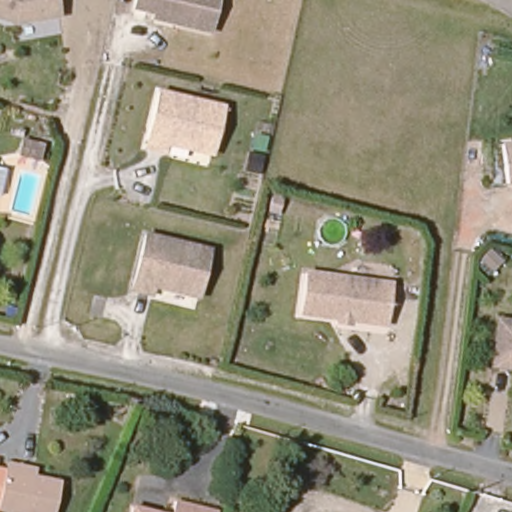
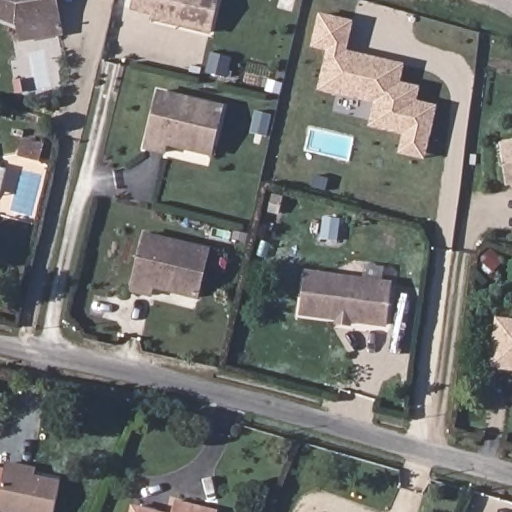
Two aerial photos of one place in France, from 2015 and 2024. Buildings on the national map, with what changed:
unchanged [(61,16),(15,25),(0,20),(0,0),(58,0),(61,16)]
unchanged [(212,31),(177,24),(178,16),(134,6),(135,0),(219,0),(212,31)]
new [(425,160),(398,154),(402,135),(368,127),(374,102),(317,90),(327,50),(311,47),(319,12),(354,20),(348,50),(405,64),(401,82),(421,86),(417,100),(438,105),(425,160)]
unchanged [(222,145),(194,140),(195,134),(178,131),(174,148),(154,144),(165,87),(231,101),(222,145)]
unchanged [(22,137),(44,141),(39,160),(19,155),(22,137)]
unchanged [(512,181),(507,182),(502,144),(512,142),(512,181)]
unchanged [(208,295),(180,289),(182,281),(162,277),(158,295),(138,291),(151,235),(217,250),(208,295)]
unchanged [(339,326),(340,320),(299,317),(303,275),(393,282),(391,324),(355,321),(354,327),(339,326)]
unchanged [(497,321),(512,323),(512,372),(490,370),(497,321)]
unchanged [(3,471),(5,463),(32,470),(30,478),(58,484),(51,512),(15,512),(0,509),(0,471),(3,471)]
unchanged [(208,511),(207,512),(162,512),(165,500),(208,511)]
unchanged [(151,512),(128,512),(130,506),(151,512)]

